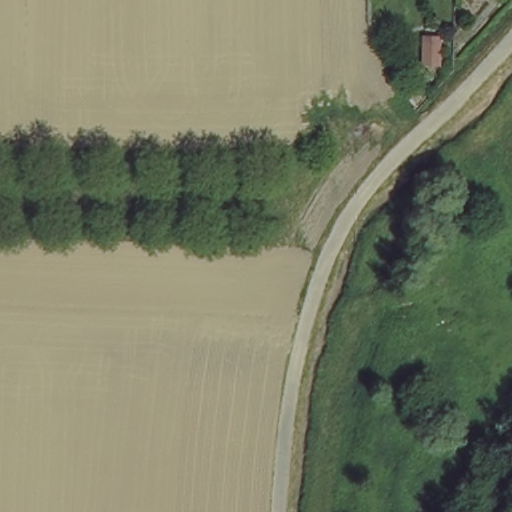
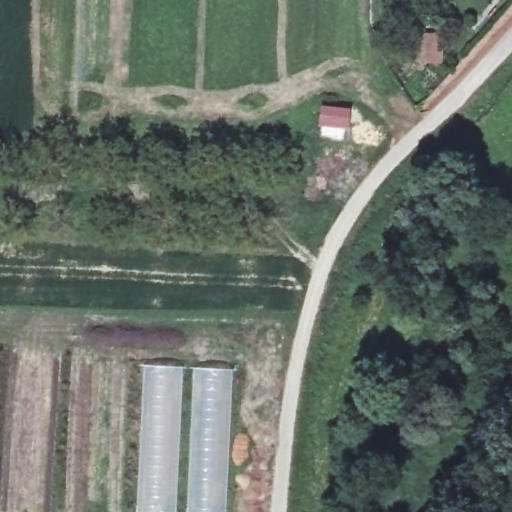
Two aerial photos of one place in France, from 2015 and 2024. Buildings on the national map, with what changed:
new [(142,366),(183,367),(178,471),(177,512),(135,512),(142,366)]
new [(191,368),(233,369),(226,512),(185,512),(191,368)]

